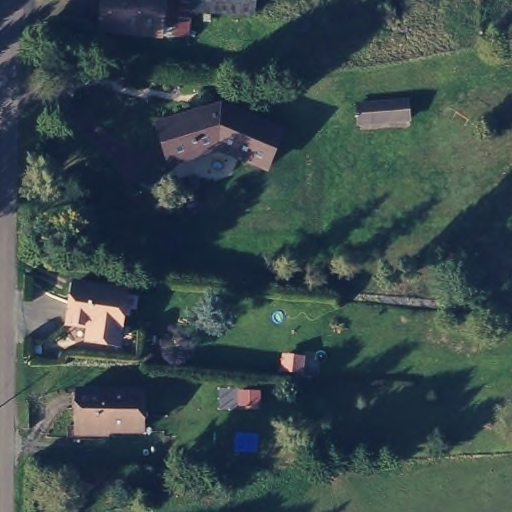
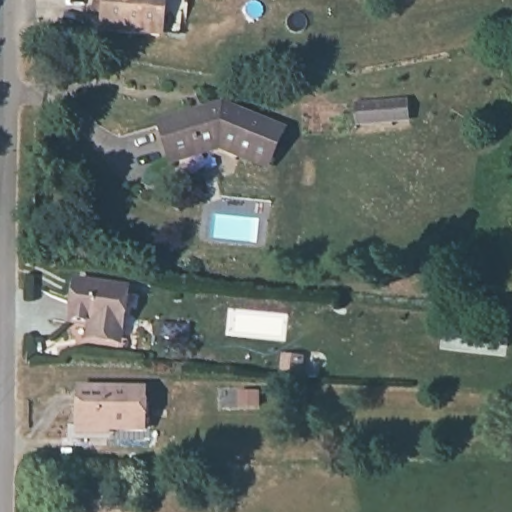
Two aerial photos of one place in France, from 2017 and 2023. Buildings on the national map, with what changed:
unchanged [(150,21),(92,15),(93,0),(151,0),(150,21)]
unchanged [(151,0),(180,0),(179,22),(150,21),(151,0)]
unchanged [(357,100),(408,96),(409,114),(358,118),(357,100)]
unchanged [(222,100),(282,126),(266,163),(219,143),(170,158),(158,120),(222,100)]
unchanged [(89,317),(68,313),(74,273),(127,281),(118,331),(97,328),(87,327),(89,317)]
unchanged [(284,371),(285,356),(303,357),(302,373),(284,371)]
unchanged [(77,425),(77,416),(77,380),(143,381),(142,421),(97,420),(97,425),(77,425)]

